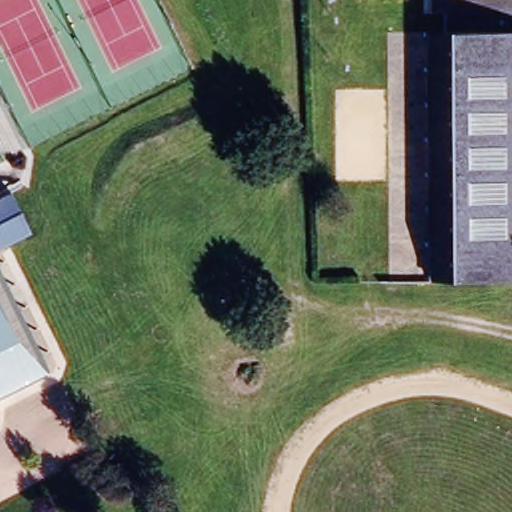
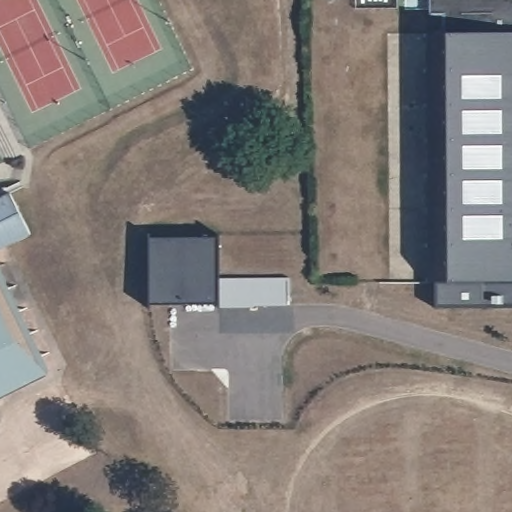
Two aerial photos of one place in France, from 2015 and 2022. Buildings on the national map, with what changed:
unchanged [(450,16),(437,16),(437,0),(512,0),(512,285),(432,286),(430,36),(450,36),(450,16)]
unchanged [(29,234),(0,248),(0,198),(9,194),(29,234)]
new [(218,303),(150,303),(150,238),(219,238),(219,279),(290,278),(290,306),(218,303)]
unchanged [(0,396),(0,282),(46,374),(0,396)]

